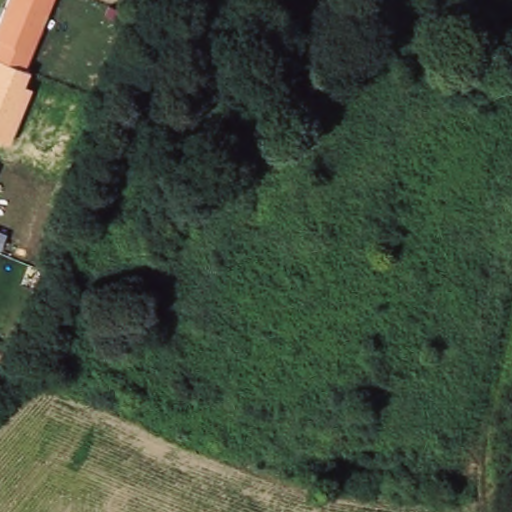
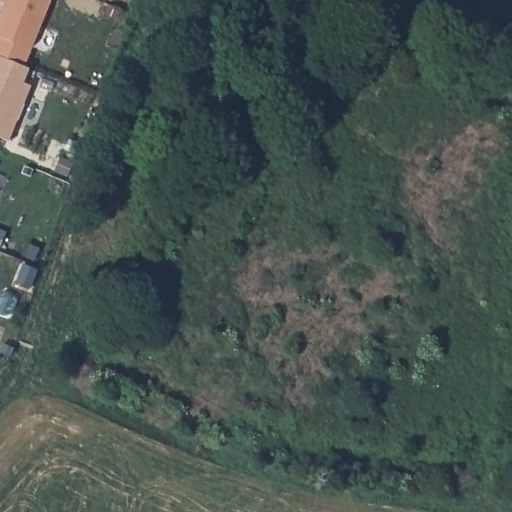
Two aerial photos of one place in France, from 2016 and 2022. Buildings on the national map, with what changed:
unchanged [(7,0),(52,0),(25,69),(0,58),(0,37),(0,19),(7,0)]
unchanged [(25,69),(28,70),(23,84),(31,90),(10,144),(0,140),(0,58),(25,69)]

